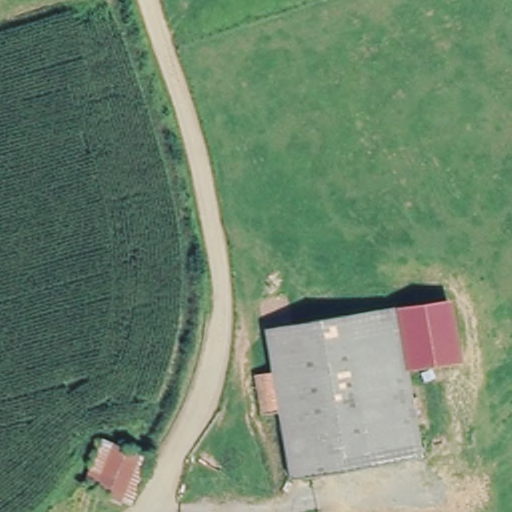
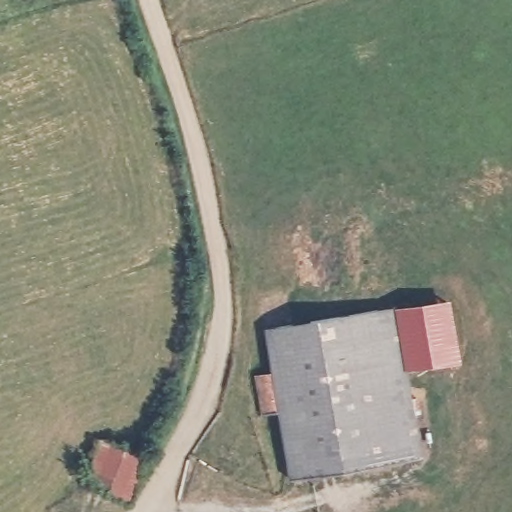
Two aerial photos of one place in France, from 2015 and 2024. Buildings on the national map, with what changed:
unchanged [(461,365),(406,373),(399,313),(452,305),(461,365)]
unchanged [(288,484),(278,412),(257,415),(253,379),(274,376),(268,332),(399,313),(406,373),(418,467),(288,484)]
unchanged [(101,443),(146,461),(123,510),(79,489),(101,443)]

